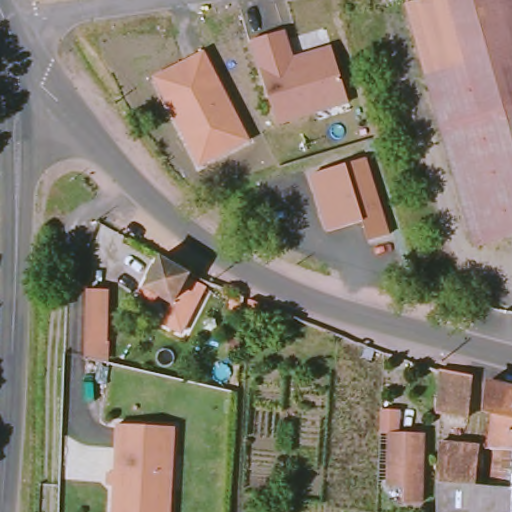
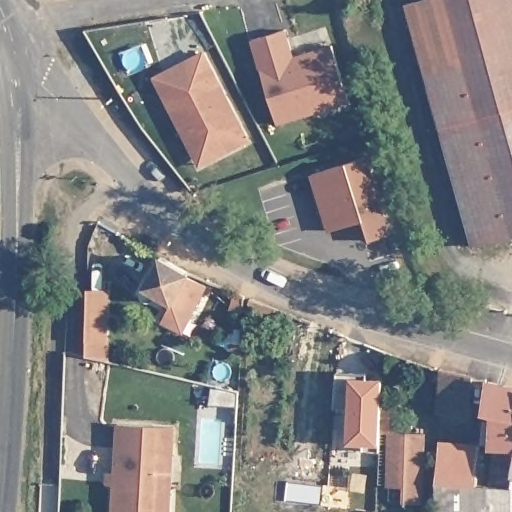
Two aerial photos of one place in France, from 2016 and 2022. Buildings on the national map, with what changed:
unchanged [(475,247),(407,6),(427,0),(447,0),(480,116),(512,107),(512,132),(487,140),(512,227),(512,235),(475,247)]
unchanged [(480,116),(447,0),(512,0),(512,107),(480,116)]
unchanged [(276,123),(251,40),(283,29),(293,59),(331,45),(348,100),(276,123)]
unchanged [(197,164),(152,76),(203,49),(249,138),(197,164)]
unchanged [(487,140),(512,132),(512,227),(487,140)]
unchanged [(365,160),(386,232),(367,238),(361,222),(327,231),(311,175),(365,160)]
unchanged [(183,331),(168,326),(159,321),(169,301),(145,287),(162,258),(189,273),(189,277),(208,285),(183,331)]
unchanged [(86,356),(87,339),(89,290),(104,290),(105,291),(103,340),(102,360),(86,356)]
unchanged [(243,298),(244,301),(243,307),(234,305),(234,295),(243,298)]
unchanged [(250,302),(263,307),(258,321),(249,316),(250,302)]
unchanged [(469,375),(463,415),(443,411),(445,394),(448,370),(469,375)]
new [(399,431),(388,430),(382,428),(381,446),(348,443),(349,406),(335,405),(336,372),(351,372),(350,377),(383,380),(382,406),(400,410),(399,431)]
unchanged [(485,445),(489,412),(481,410),(484,379),(512,386),(512,447),(485,445)]
unchanged [(179,427),(176,456),(173,489),(170,512),(113,512),(116,482),(109,482),(110,470),(118,470),(122,421),(179,427)]
unchanged [(388,430),(422,432),(418,502),(400,500),(400,484),(385,482),(388,430)]
unchanged [(434,441),(456,442),(475,443),(472,480),(508,483),(508,512),(431,512),(432,478),(434,441)]
unchanged [(508,477),(508,470),(512,448),(512,512),(508,512),(508,483),(508,477)]

